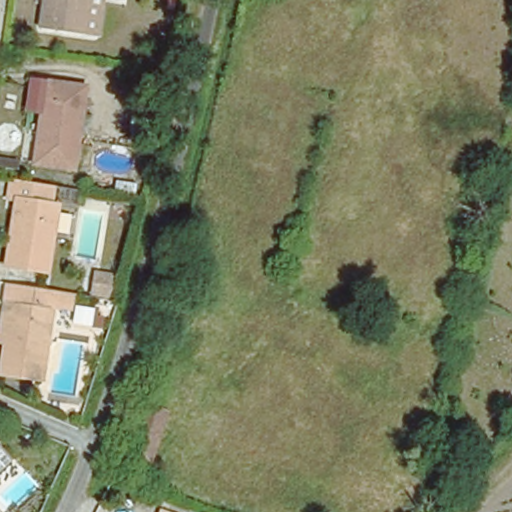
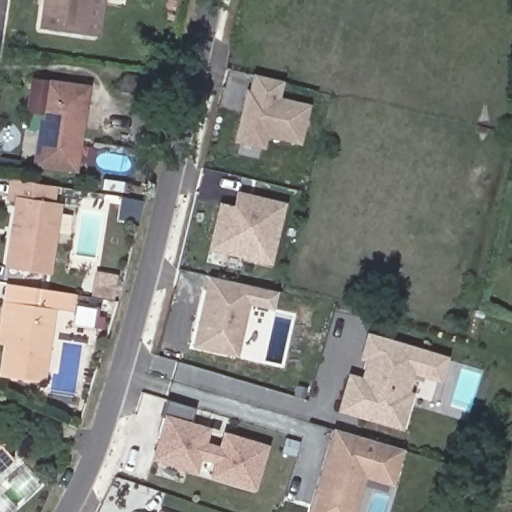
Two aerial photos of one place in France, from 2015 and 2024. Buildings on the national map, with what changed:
unchanged [(40,27),(44,0),(103,0),(98,36),(40,27)]
unchanged [(124,82),(126,71),(161,78),(159,89),(124,82)]
new [(300,143),(266,135),(264,146),(237,140),(252,74),(280,81),(277,99),(308,105),(300,143)]
unchanged [(75,166),(36,161),(47,81),(86,86),(75,166)]
unchanged [(12,175),(55,182),(51,198),(60,199),(49,265),(7,258),(18,193),(10,192),(12,175)]
new [(217,249),(219,237),(214,236),(221,205),(235,209),(238,194),(282,205),(270,262),(217,249)]
unchanged [(111,299),(89,295),(92,270),(115,274),(111,299)]
new [(273,310),(249,304),(238,358),(193,347),(209,275),(278,290),(273,310)]
unchanged [(40,376),(1,369),(6,339),(0,338),(0,323),(8,278),(72,288),(69,306),(52,304),(40,376)]
new [(338,411),(349,373),(362,376),(366,361),(359,359),(366,332),(449,356),(440,383),(414,374),(409,391),(414,393),(403,430),(338,411)]
new [(154,457),(166,417),(161,416),(165,399),(194,408),(189,424),(208,429),(204,443),(218,447),(223,434),(265,447),(253,488),(210,475),(214,462),(199,457),(195,470),(154,457)]
demolished [(146,403),(168,411),(151,463),(128,455),(146,403)]
new [(394,476),(376,471),(364,476),(354,512),(309,512),(334,428),(402,449),(394,476)]
unchanged [(0,474),(0,442),(16,459),(0,474)]
unchanged [(161,502),(188,512),(157,512),(161,502)]

